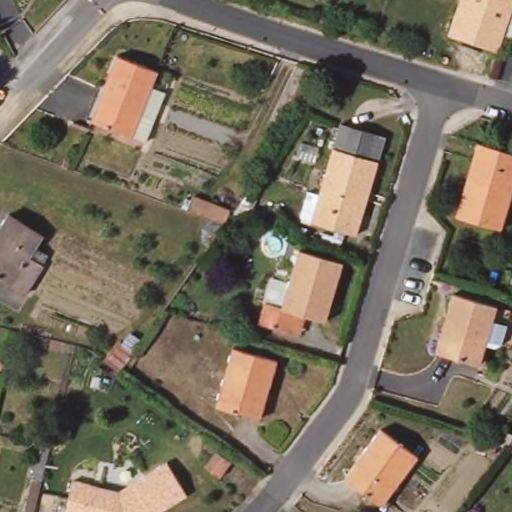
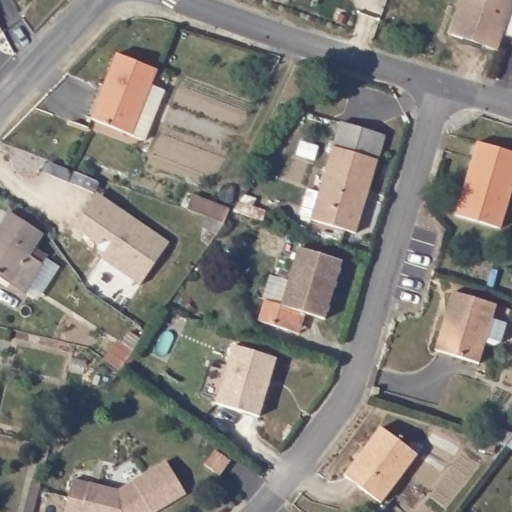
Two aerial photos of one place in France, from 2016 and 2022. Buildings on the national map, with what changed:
unchanged [(505,41),(502,50),(454,34),(465,0),(512,0),(512,20),(507,34),(505,41)]
unchanged [(512,20),(512,35),(507,34),(512,20)]
unchanged [(146,137),(131,133),(91,118),(116,55),(156,70),(151,84),(166,89),(146,137)]
unchanged [(385,136),(355,232),(312,220),(312,217),(300,214),(309,190),(320,193),(341,123),(385,136)]
unchanged [(512,187),(500,227),(455,213),(477,142),(512,153),(512,187)]
new [(100,192),(124,210),(171,243),(141,285),(102,257),(114,242),(106,236),(101,243),(76,225),(91,204),(100,192)]
unchanged [(194,195),(229,207),(223,222),(188,210),(194,195)]
unchanged [(10,214),(43,235),(30,255),(43,265),(25,291),(0,274),(0,228),(10,214)]
unchanged [(291,331),(258,321),(265,301),(281,305),(299,247),(343,260),(326,318),(306,313),(300,332),(291,331)]
unchanged [(501,304),(496,320),(511,324),(506,341),(490,337),(483,361),(440,348),(458,292),(501,304)]
unchanged [(276,357),(260,417),(215,403),(232,346),(276,357)]
unchanged [(417,455),(382,502),(345,475),(380,427),(417,455)]
unchanged [(506,428),(512,432),(512,438),(506,445),(496,442),(506,428)]
unchanged [(482,437),(496,442),(493,452),(479,448),(482,437)]
unchanged [(230,462),(220,477),(205,466),(215,451),(230,462)]
unchanged [(118,491),(166,462),(186,495),(157,512),(64,512),(72,480),(118,491)]

